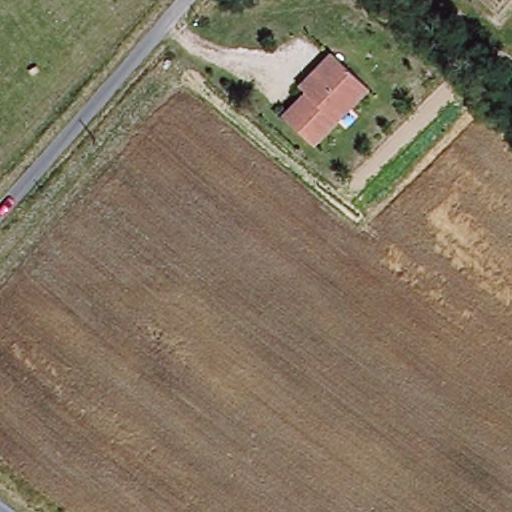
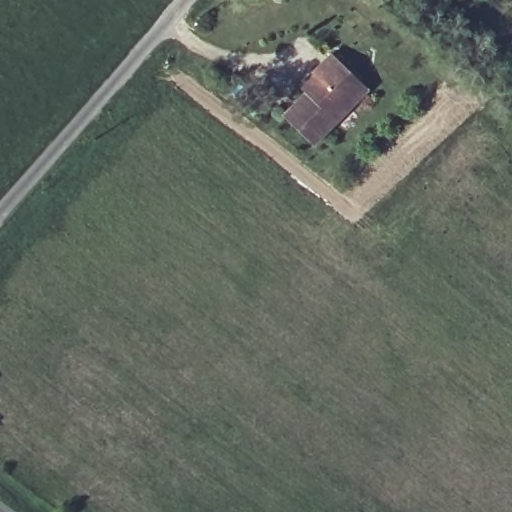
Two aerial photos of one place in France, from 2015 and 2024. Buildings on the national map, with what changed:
unchanged [(363,87),(307,145),(277,116),(300,92),(293,86),(308,71),(326,52),(363,87)]

